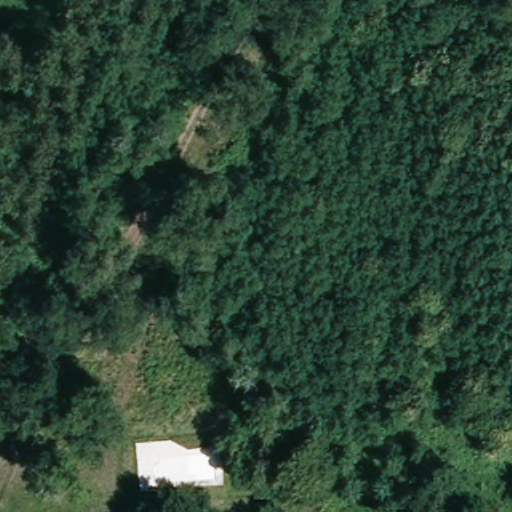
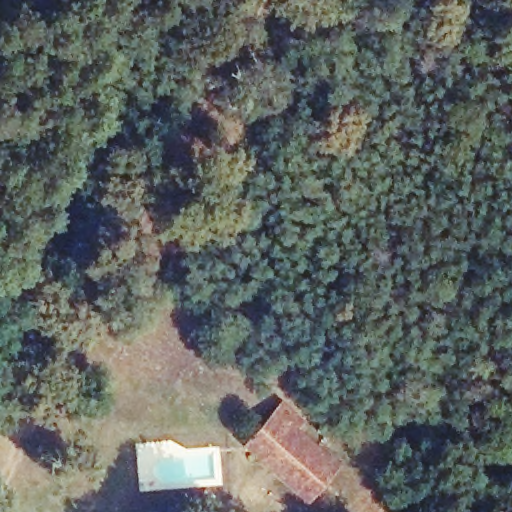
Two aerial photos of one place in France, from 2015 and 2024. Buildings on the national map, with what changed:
new [(303,421),(297,430),(338,467),(305,504),(238,446),(277,400),(303,421)]
demolished [(272,451),(256,438),(269,422),(284,435),(272,451)]

